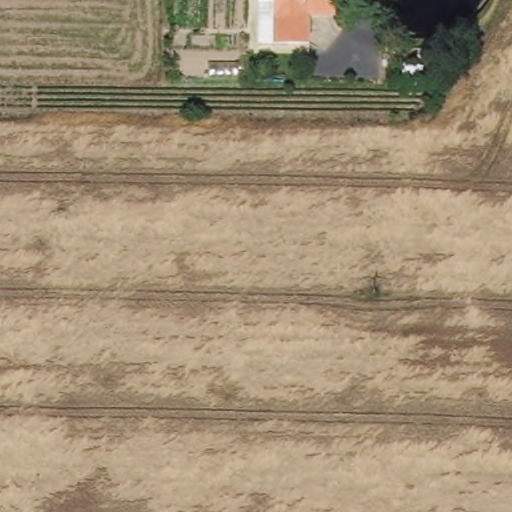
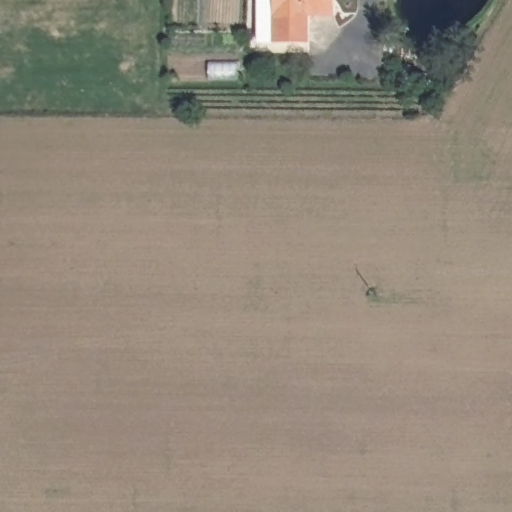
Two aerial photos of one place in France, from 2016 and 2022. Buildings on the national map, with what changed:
unchanged [(308,15),(307,42),(257,39),(259,0),(334,0),(333,17),(308,15)]

